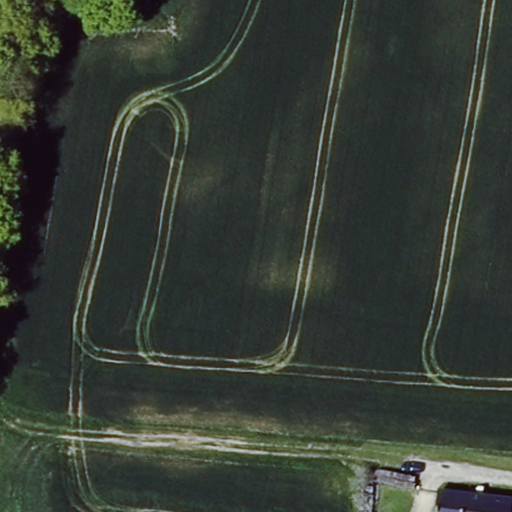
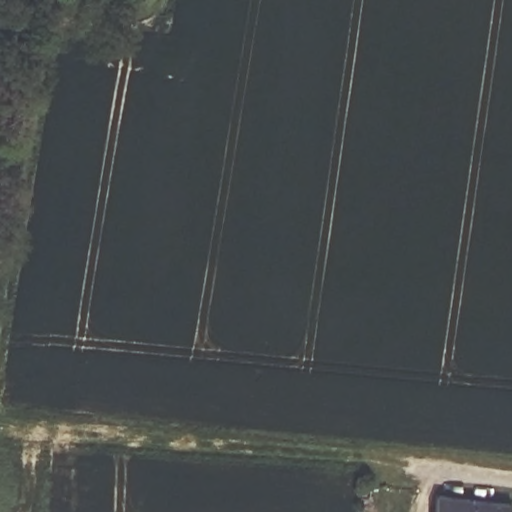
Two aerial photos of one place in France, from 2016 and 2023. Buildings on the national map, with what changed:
unchanged [(437,512),(441,494),(512,501),(512,512),(437,512)]

